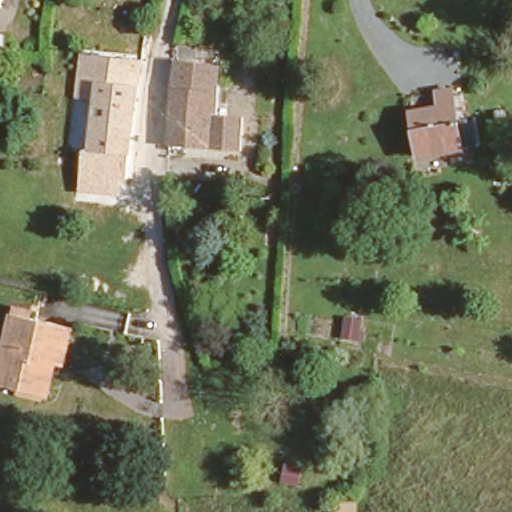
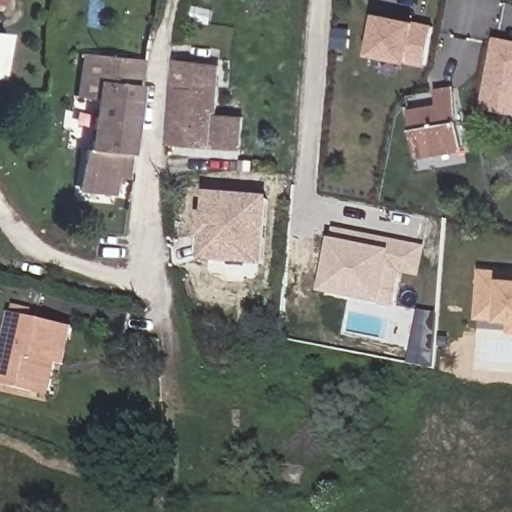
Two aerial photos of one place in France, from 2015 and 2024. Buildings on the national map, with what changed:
unchanged [(7,1),(0,1),(0,0),(7,0),(7,1)]
new [(433,24),(425,65),(362,53),(368,8),(433,24)]
unchanged [(7,27),(5,68),(0,68),(0,27),(7,27)]
new [(512,113),(477,106),(490,33),(512,38),(512,113)]
unchanged [(131,170),(117,168),(115,189),(75,183),(84,94),(69,93),(73,46),(142,52),(131,170)]
unchanged [(218,68),(216,96),(245,101),(240,152),(165,141),(174,62),(218,68)]
unchanged [(407,153),(401,104),(435,101),(432,84),(458,82),(468,149),(407,153)]
new [(263,196),(260,265),(196,261),(200,191),(263,196)]
new [(423,246),(417,277),(397,275),(392,306),(317,292),(328,228),(423,246)]
new [(512,331),(506,331),(506,320),(476,318),(475,267),(512,270),(512,331)]
unchanged [(30,392),(0,385),(0,351),(12,308),(71,325),(62,361),(52,359),(44,395),(30,392)]

